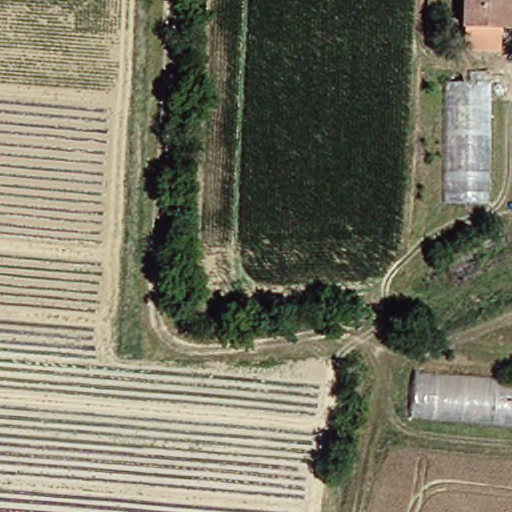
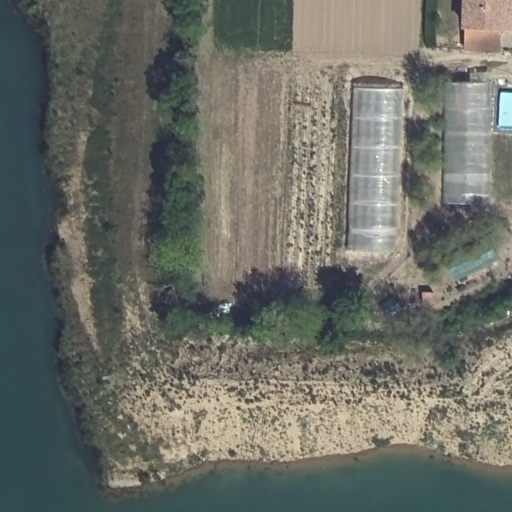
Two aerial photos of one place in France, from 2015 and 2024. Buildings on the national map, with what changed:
unchanged [(511,27),(461,25),(463,0),(512,0),(512,6),(511,27)]
new [(465,51),(466,25),(503,26),(502,51),(465,51)]
unchanged [(480,202),(437,202),(438,80),(482,81),(480,202)]
new [(398,252),(349,252),(355,87),(406,89),(398,252)]
demolished [(406,412),(411,372),(512,382),(512,423),(406,412)]

